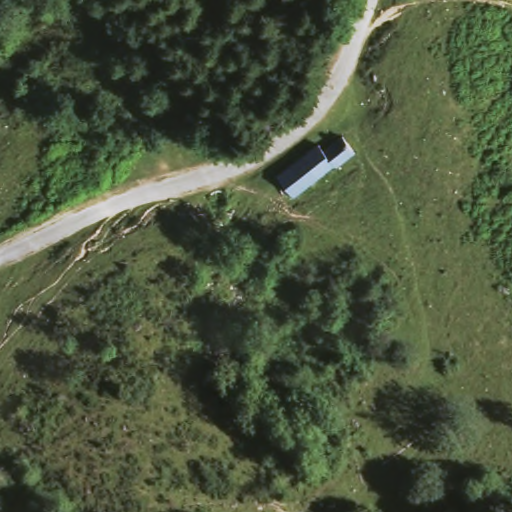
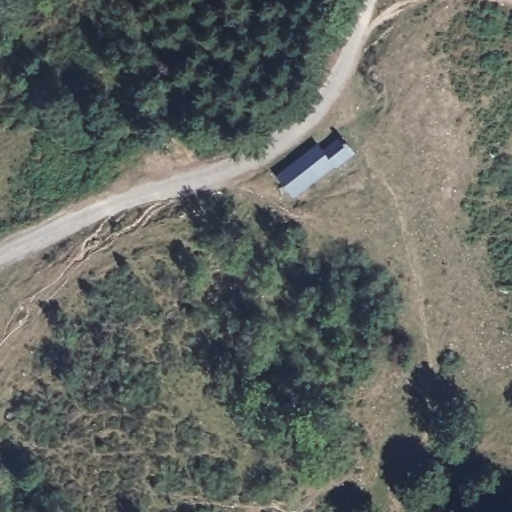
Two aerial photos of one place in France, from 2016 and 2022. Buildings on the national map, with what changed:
unchanged [(361,151),(337,166),(294,204),(273,176),(296,159),(316,142),(325,150),(346,132),(361,151)]

